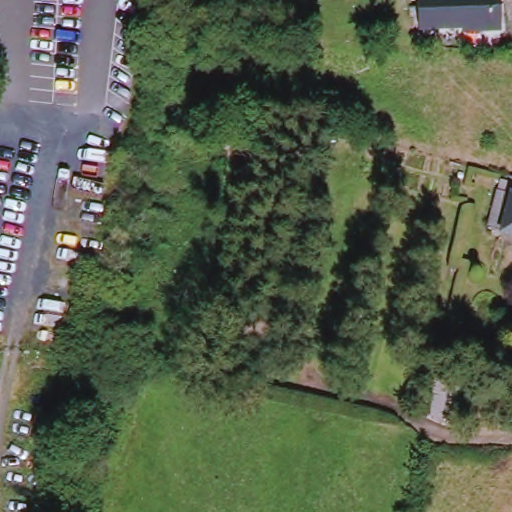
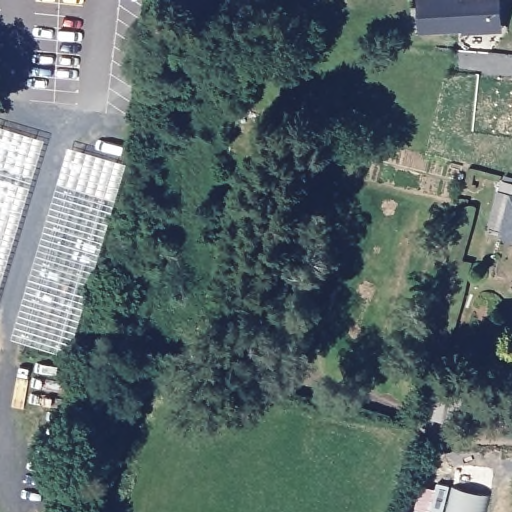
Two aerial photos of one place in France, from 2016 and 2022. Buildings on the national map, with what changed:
unchanged [(494,9),(495,20),(486,30),(465,31),(465,27),(422,30),(420,0),(502,0),(502,9),(494,9)]
unchanged [(507,235),(494,232),(506,185),(512,186),(512,237),(507,235)]
unchanged [(435,378),(465,383),(459,422),(428,417),(435,378)]
new [(437,481),(449,485),(442,512),(430,512),(437,481)]
new [(454,487),(490,496),(486,512),(448,512),(454,487)]
new [(415,510),(423,512),(414,512),(415,510)]

